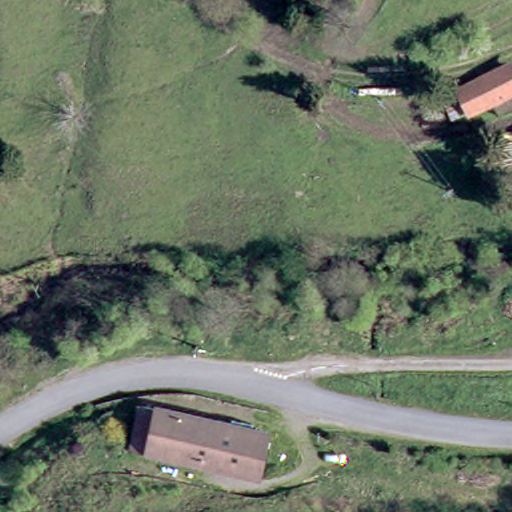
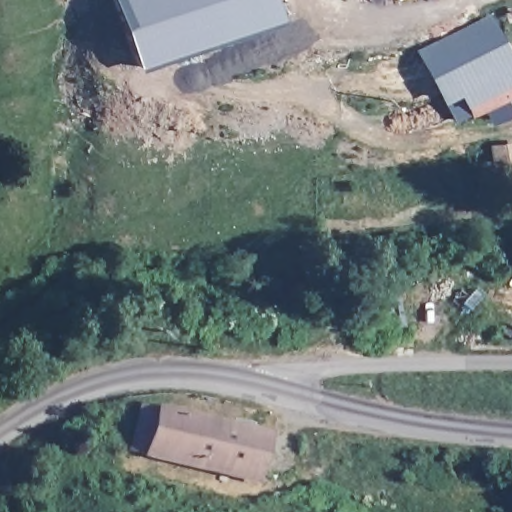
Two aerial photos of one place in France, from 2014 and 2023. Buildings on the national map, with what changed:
new [(283,29),(137,74),(113,0),(275,0),(283,29)]
new [(512,114),(490,124),(484,109),(454,125),(441,102),(416,50),(490,14),(512,59),(512,114)]
demolished [(467,83),(512,65),(512,95),(477,110),(467,83)]
unchanged [(265,463),(258,461),(255,477),(128,448),(137,403),(167,409),(228,424),(230,418),(250,423),(248,428),(265,432),(264,440),(270,441),(265,463)]

